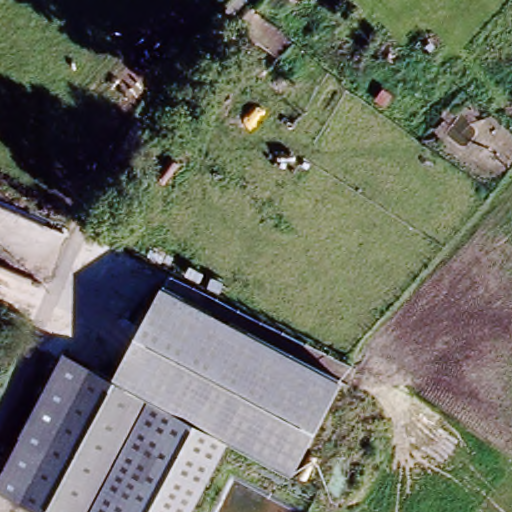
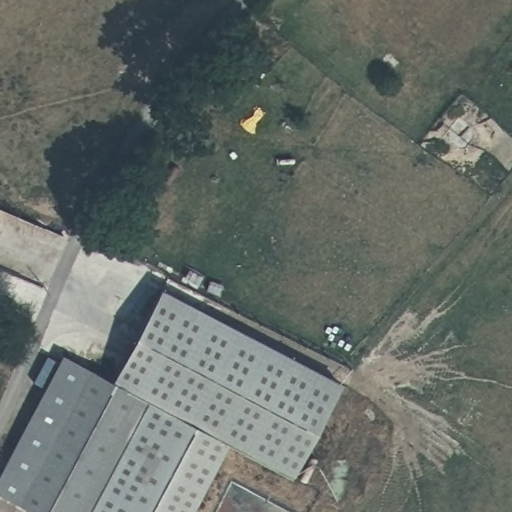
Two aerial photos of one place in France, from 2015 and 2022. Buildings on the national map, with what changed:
unchanged [(217,53),(230,64),(197,101),(184,90),(217,53)]
unchanged [(392,100),(384,109),(375,102),(382,93),(392,100)]
unchanged [(292,477),(225,447),(109,385),(160,289),(341,384),(292,477)]
unchanged [(0,498),(0,480),(63,361),(90,375),(20,508),(0,498)]
unchanged [(190,512),(27,512),(20,508),(90,375),(225,447),(190,512)]

